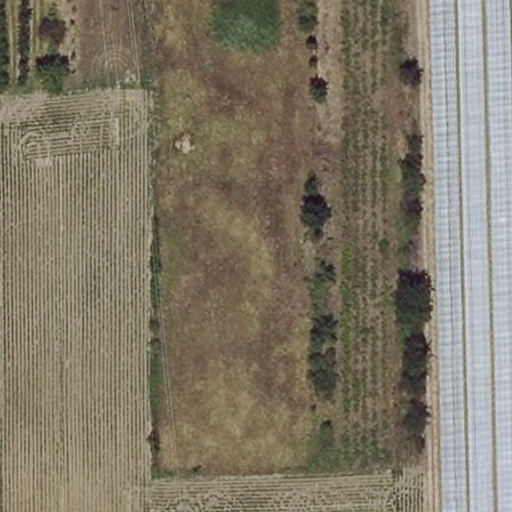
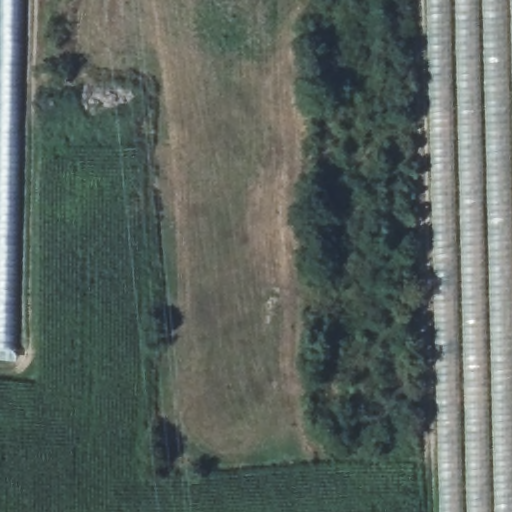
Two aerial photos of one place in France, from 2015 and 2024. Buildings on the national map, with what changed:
new [(11,362),(0,361),(0,0),(20,0),(11,362)]
unchanged [(441,512),(428,0),(512,0),(512,512),(441,512)]

